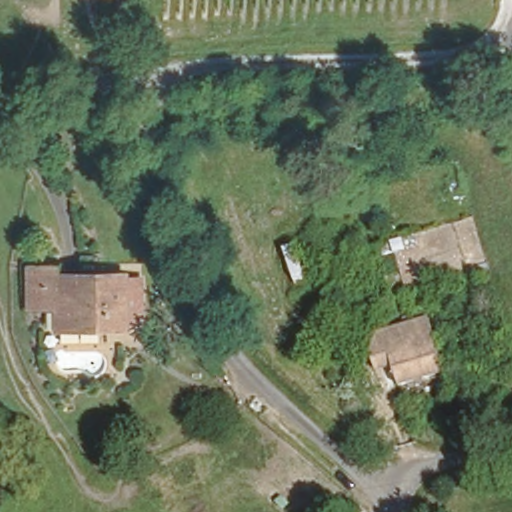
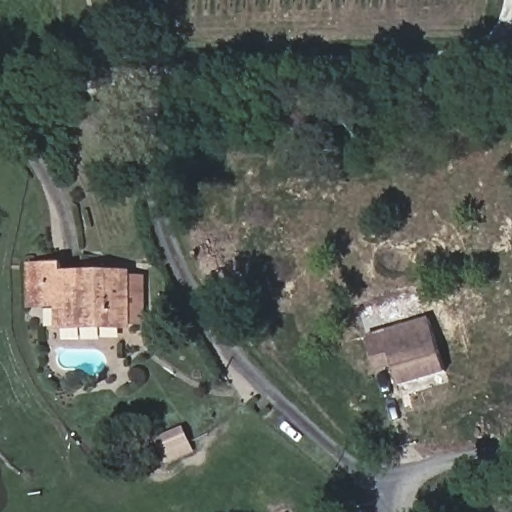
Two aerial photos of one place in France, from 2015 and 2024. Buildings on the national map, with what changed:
unchanged [(44,291),(44,260),(63,260),(63,272),(128,271),(129,323),(64,323),(64,309),(44,309),(44,291)]
unchanged [(425,318),(442,369),(398,382),(394,365),(375,371),(366,337),(425,318)]

